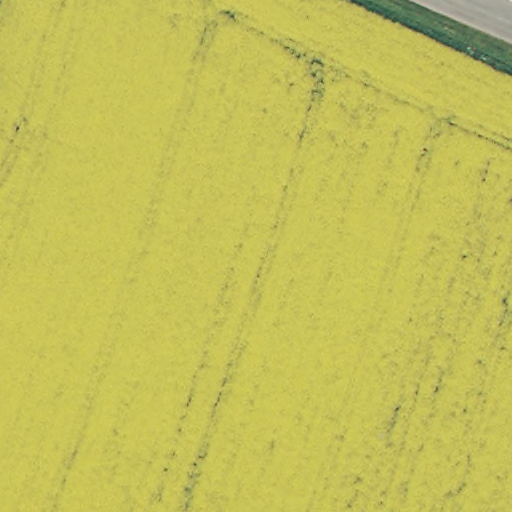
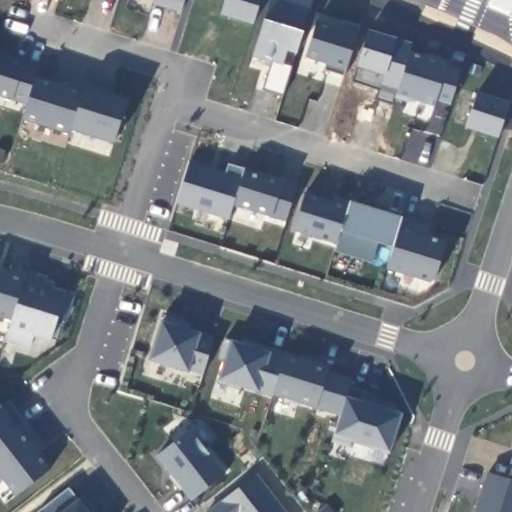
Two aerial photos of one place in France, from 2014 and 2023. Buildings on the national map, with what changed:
new [(181,12),(165,7),(167,0),(185,0),(181,12)]
new [(221,15),(226,0),(261,0),(254,25),(221,15)]
new [(297,53),(287,50),(283,65),(291,67),(283,94),(263,90),(271,64),(253,58),(271,0),(312,0),(297,53)]
new [(343,75),(325,70),(327,65),(306,58),(319,21),(342,27),(345,22),(358,26),(356,33),(345,71),(343,75)]
new [(450,103),(435,99),(433,106),(420,102),(419,104),(395,98),(409,51),(447,63),(446,68),(460,71),(450,103)]
new [(36,76),(66,85),(69,77),(84,82),(85,85),(127,99),(112,144),(70,131),(69,134),(23,120),(27,105),(0,97),(0,56),(39,68),(36,76)]
new [(466,128),(477,93),(510,104),(498,139),(466,128)]
new [(189,162),(209,168),(207,171),(225,176),(227,165),(244,170),(228,221),(175,205),(189,162)]
new [(244,170),(296,185),(285,222),(233,206),(244,170)]
new [(432,284),(388,269),(394,248),(377,242),(372,263),(336,250),(338,245),(295,231),(306,193),(332,200),(335,195),(350,202),(402,217),(430,225),(428,234),(447,240),(432,284)]
new [(10,267),(26,273),(27,271),(49,277),(48,280),(56,283),(55,288),(67,292),(75,298),(67,323),(58,318),(50,342),(35,337),(29,350),(4,341),(10,321),(0,317),(0,270),(8,272),(10,267)]
new [(165,315),(192,324),(190,330),(215,338),(204,374),(190,369),(189,372),(151,360),(165,315)]
new [(225,361),(219,359),(225,340),(232,341),(270,353),(287,353),(329,367),(327,371),(351,379),(348,386),(365,392),(362,402),(402,414),(390,453),(351,441),(350,448),(332,442),(335,435),(341,415),(272,395),(271,397),(257,392),(219,381),(225,361)]
new [(30,423),(47,446),(40,454),(50,469),(15,495),(0,476),(0,403),(2,405),(10,401),(27,424),(30,423)]
new [(192,500),(155,456),(191,430),(225,476),(192,500)]
new [(510,464),(512,457),(512,465),(510,464)]
new [(512,481),(512,512),(474,512),(486,472),(512,481)]
new [(285,512),(208,512),(258,476),(285,512)]
new [(79,499),(83,496),(92,509),(90,512),(40,512),(69,489),(79,499)]

